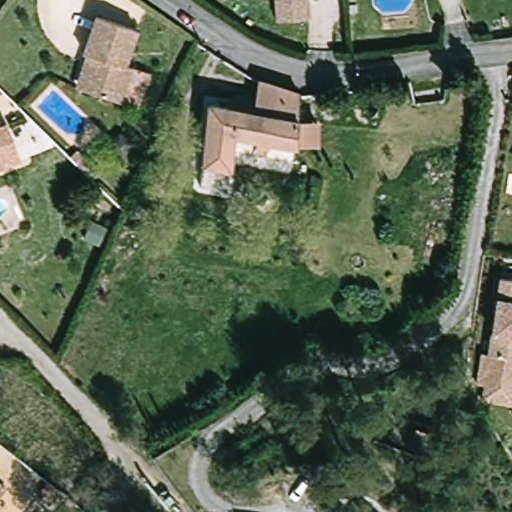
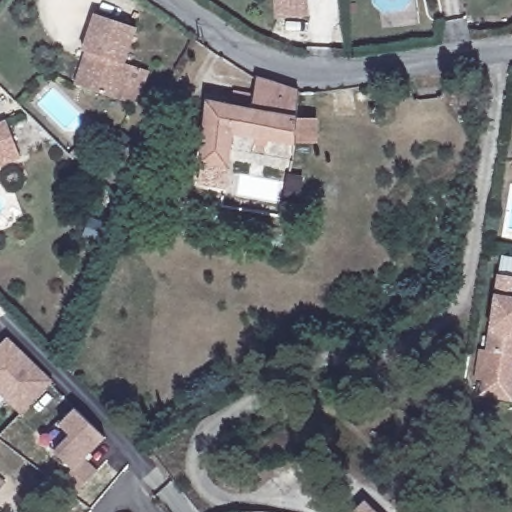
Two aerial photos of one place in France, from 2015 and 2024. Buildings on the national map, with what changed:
unchanged [(282,26),(280,0),(312,0),(314,23),(282,26)]
unchanged [(87,53),(83,52),(96,16),(137,30),(126,65),(132,67),(120,101),(82,89),(75,86),(87,53)]
unchanged [(319,145),(296,145),(236,134),(231,168),(200,163),(206,103),(230,108),(232,93),(255,96),(257,77),(293,90),(298,91),(298,92),(297,120),(319,120),(319,145)]
unchanged [(0,164),(0,141),(8,161),(0,164)]
unchanged [(504,279),(512,280),(512,406),(485,402),(487,387),(504,279)]
new [(55,382),(22,415),(0,393),(0,344),(8,336),(55,382)]
new [(75,408),(106,437),(85,459),(98,470),(75,496),(59,484),(72,469),(54,452),(71,434),(60,424),(75,408)]
unchanged [(0,491),(0,480),(6,485),(0,491)]
unchanged [(360,509),(364,512),(357,512),(360,509)]

